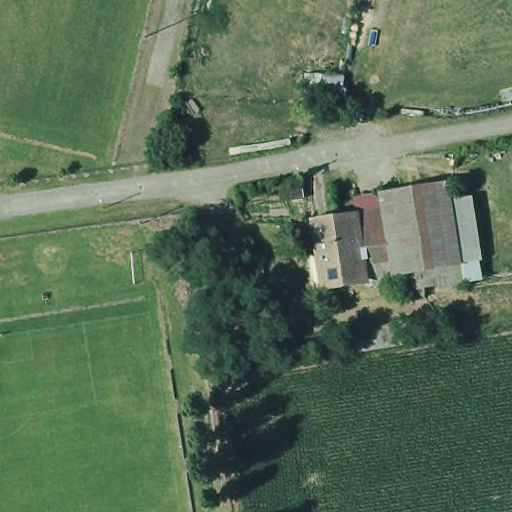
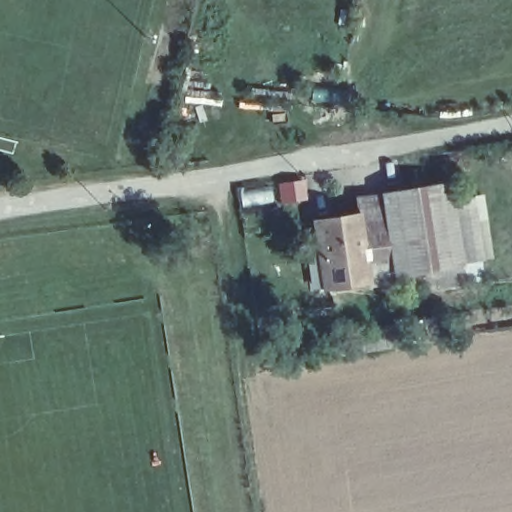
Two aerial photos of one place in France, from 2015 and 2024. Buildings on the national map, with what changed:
unchanged [(429,248),(422,204),(390,209),(387,191),(451,183),(466,263),(401,272),(398,256),(397,252),(429,248)]
unchanged [(390,209),(422,204),(429,248),(397,252),(390,209)]
unchanged [(398,256),(367,261),(360,213),(390,209),(397,252),(398,256)]
unchanged [(369,277),(325,284),(317,219),(360,213),(367,261),(369,277)]

